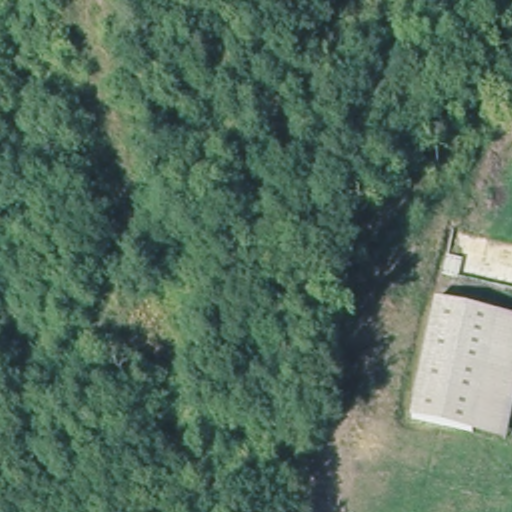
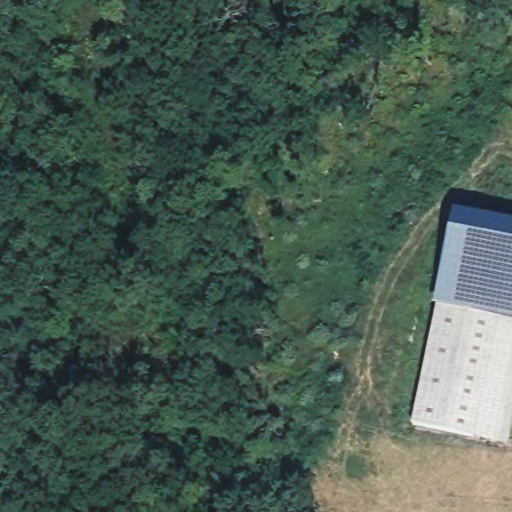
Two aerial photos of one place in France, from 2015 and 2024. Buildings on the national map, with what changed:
new [(512,221),(512,320),(434,303),(454,208),(512,221)]
unchanged [(411,425),(436,305),(512,321),(512,424),(507,446),(411,425)]

